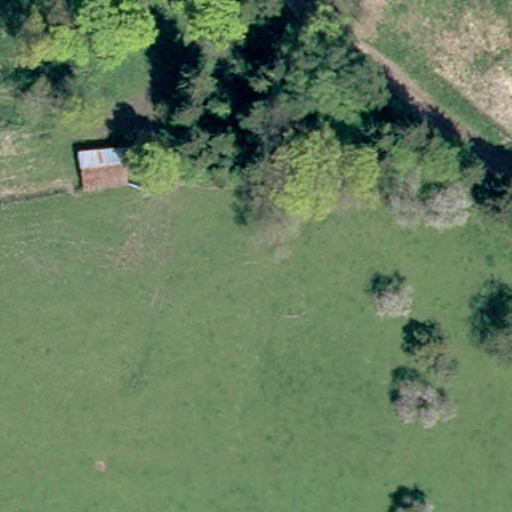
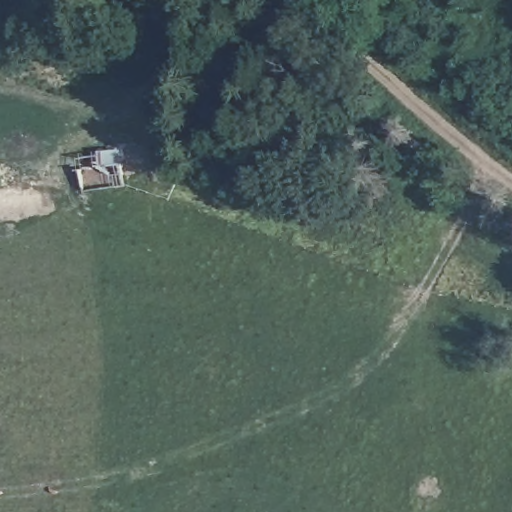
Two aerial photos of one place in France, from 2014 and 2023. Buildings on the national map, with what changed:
unchanged [(81,159),(121,152),(127,186),(88,192),(81,159)]

